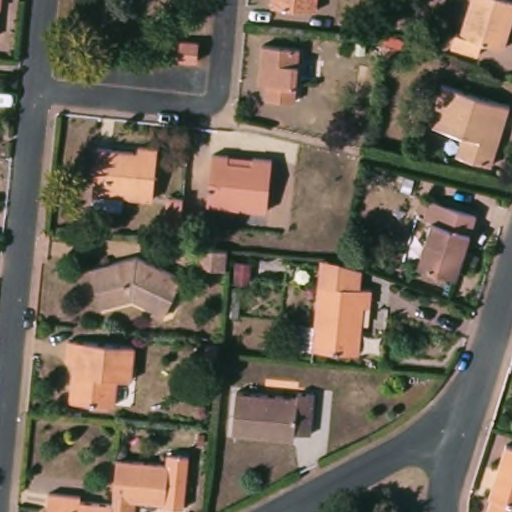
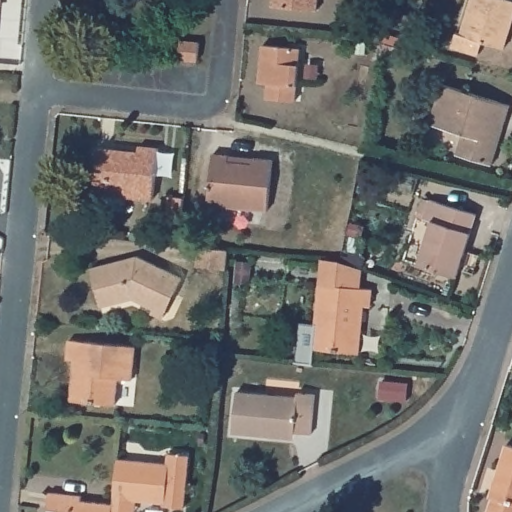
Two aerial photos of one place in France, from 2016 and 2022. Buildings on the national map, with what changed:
unchanged [(316,8),(273,3),(273,0),(316,0),(316,8)]
unchanged [(473,0),(512,0),(512,26),(506,48),(485,41),(480,54),(453,45),(467,4),(472,5),(473,0)]
unchanged [(212,38),(210,62),(187,60),(189,36),(212,38)]
unchanged [(301,50),(297,104),(267,102),(268,85),(261,84),(263,48),(301,50)]
unchanged [(507,106),(489,166),(454,155),(461,134),(428,124),(441,84),(507,106)]
unchanged [(135,153),(136,147),(154,149),(149,197),(91,192),(95,149),(135,153)]
unchanged [(225,156),(225,165),(249,168),(250,160),(268,162),(264,212),(206,206),(212,155),(225,156)]
unchanged [(193,197),(190,228),(172,226),(176,195),(193,197)]
unchanged [(419,222),(425,201),(473,216),(455,279),(415,266),(427,225),(419,222)]
unchanged [(239,246),(237,267),(204,264),(206,243),(239,246)]
unchanged [(152,308),(129,297),(97,305),(87,268),(139,256),(180,280),(173,294),(164,314),(152,308)]
unchanged [(363,305),(356,305),(351,351),(293,346),(296,323),(312,324),(315,285),(317,260),(336,262),(353,268),(352,289),(365,290),(363,305)]
unchanged [(69,357),(70,338),(135,345),(132,377),(118,376),(115,402),(72,398),(77,358),(69,357)]
unchanged [(271,436),(234,433),(237,394),(297,398),(297,392),(314,393),(311,432),(287,430),(286,438),(271,436)]
unchanged [(512,512),(490,512),(485,510),(491,492),(488,491),(503,442),(512,445),(512,512)]
unchanged [(127,512),(111,512),(111,511),(112,503),(116,463),(116,460),(166,465),(165,468),(162,501),(162,502),(135,499),(134,503),(133,512),(127,512)]
unchanged [(47,493),(76,495),(76,499),(112,503),(111,511),(111,512),(45,512),(46,506),(47,493)]

